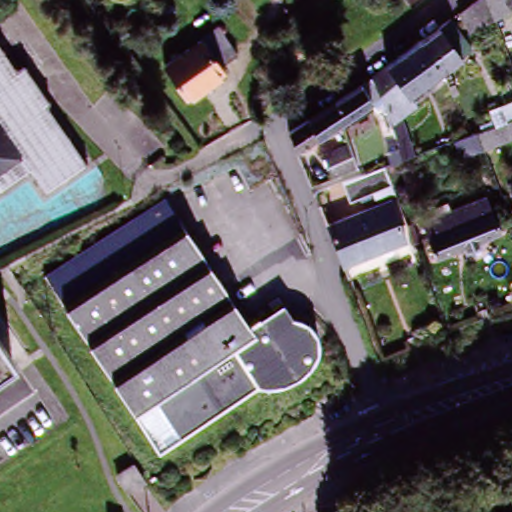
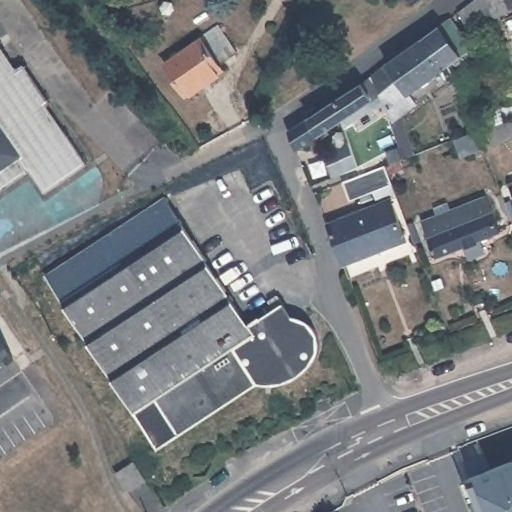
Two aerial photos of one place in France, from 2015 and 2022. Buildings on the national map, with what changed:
unchanged [(412,7),(407,0),(421,0),(412,7)]
unchanged [(470,0),(512,0),(512,8),(507,10),(493,16),(465,27),(459,8),(470,0)]
unchanged [(419,37),(450,15),(471,47),(447,64),(455,82),(447,85),(441,68),(408,90),(386,62),(419,37)]
unchanged [(216,31),(232,60),(216,68),(220,74),(180,94),(162,59),(216,31)]
unchanged [(28,59),(54,95),(50,99),(91,158),(49,187),(35,166),(25,151),(0,168),(0,38),(19,65),(28,59)]
unchanged [(390,119),(388,120),(388,121),(380,99),(371,72),(386,62),(408,90),(416,101),(415,102),(402,111),(415,148),(402,152),(399,144),(390,119)]
unchanged [(298,122),(299,123),(316,112),(332,101),(371,72),(380,99),(349,122),(345,116),(343,117),(331,126),(313,137),(301,145),(295,149),(286,127),(298,122)]
unchanged [(490,111),(498,107),(498,109),(512,104),(512,121),(496,127),(490,111)]
unchanged [(476,135),(477,137),(512,124),(512,143),(483,154),(460,162),(453,144),(465,139),(476,135)]
unchanged [(386,152),(398,147),(402,159),(390,163),(386,152)]
unchanged [(325,157),(350,148),(357,167),(332,177),(325,157)]
unchanged [(35,166),(0,190),(0,168),(25,151),(35,166)]
unchanged [(383,166),(391,188),(351,202),(343,181),(383,166)]
unchanged [(436,202),(452,197),(455,204),(488,192),(501,232),(438,254),(425,215),(439,210),(436,202)]
unchanged [(161,197),(188,237),(245,322),(275,302),(280,298),(293,315),(295,315),(300,316),(305,318),(310,323),(315,327),(317,331),(318,337),(318,342),(318,347),(317,351),(315,356),(311,362),(306,367),(300,370),(293,374),(286,377),(279,379),(271,380),(265,380),(257,380),(162,446),(45,278),(64,265),(161,197)]
unchanged [(388,201),(402,237),(345,260),(331,222),(388,201)]
unchanged [(409,218),(415,237),(411,239),(407,230),(404,220),(409,218)]
unchanged [(0,359),(0,351),(4,357),(0,359)]
new [(512,461),(512,512),(477,512),(465,480),(512,461)]
unchanged [(119,497),(131,490),(138,500),(126,508),(119,497)]

